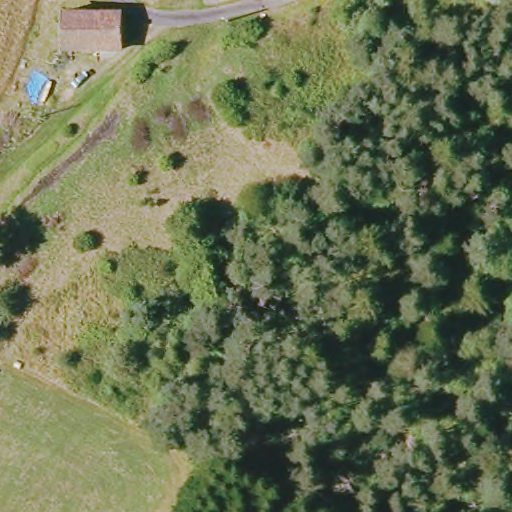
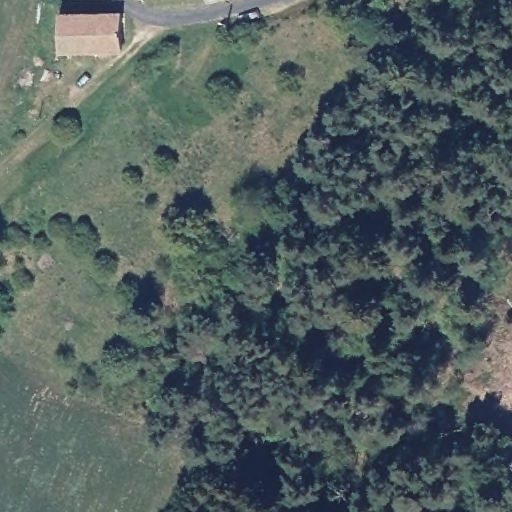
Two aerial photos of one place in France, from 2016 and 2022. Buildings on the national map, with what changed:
unchanged [(126,24),(127,55),(121,59),(61,55),(65,19),(126,22),(126,24)]

